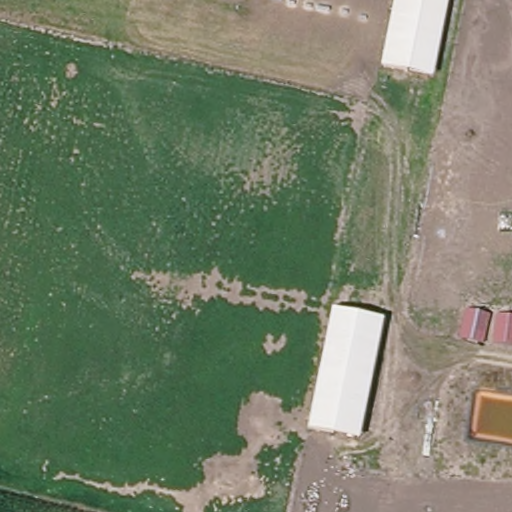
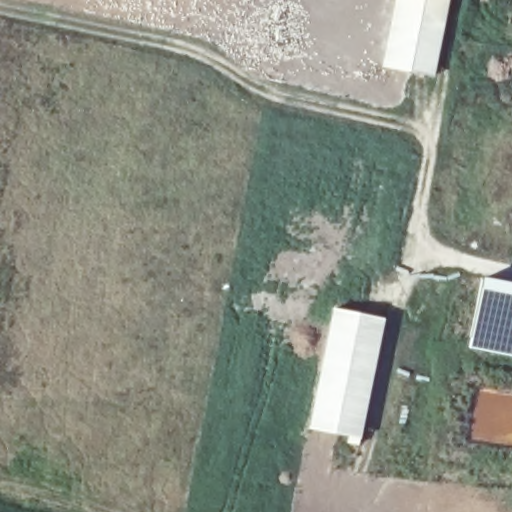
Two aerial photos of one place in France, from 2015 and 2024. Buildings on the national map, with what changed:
unchanged [(380,69),(394,0),(449,0),(434,79),(380,69)]
new [(512,282),(512,358),(466,349),(481,276),(512,282)]
unchanged [(308,430),(331,309),(384,320),(360,441),(308,430)]
demolished [(490,315),(485,343),(460,340),(466,309),(490,315)]
demolished [(512,347),(494,344),(497,313),(512,315),(512,347)]

